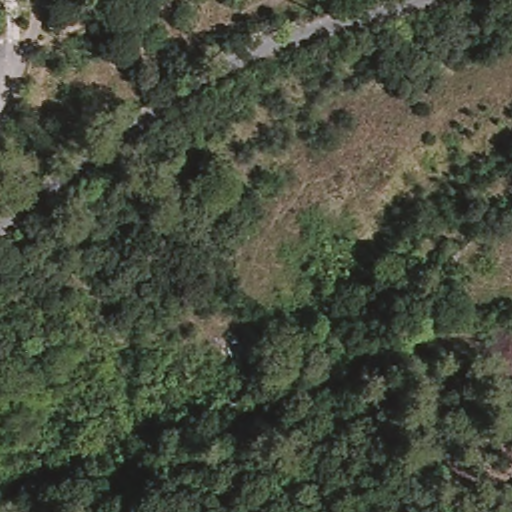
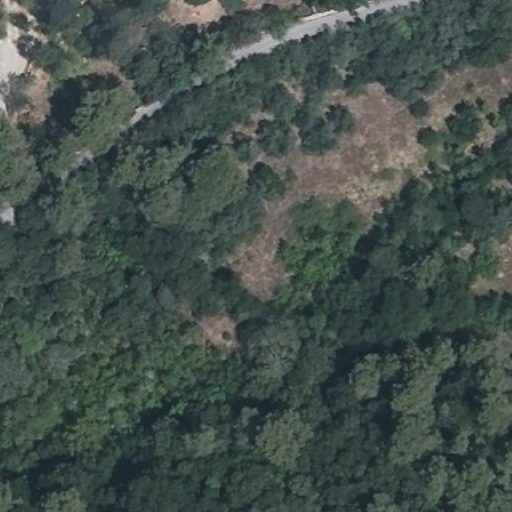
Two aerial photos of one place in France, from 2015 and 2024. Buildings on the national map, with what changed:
[]

